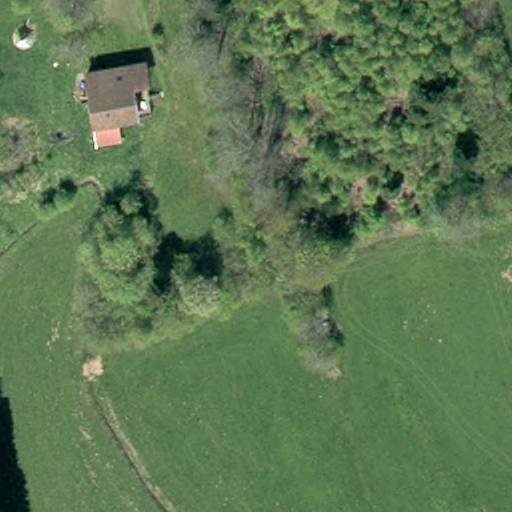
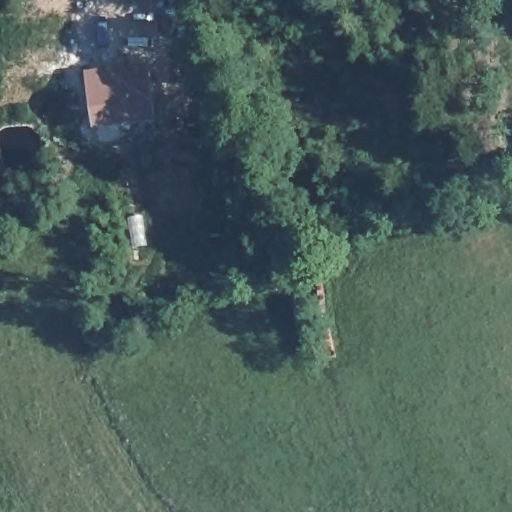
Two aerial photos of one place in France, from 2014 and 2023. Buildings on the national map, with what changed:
unchanged [(93,136),(90,117),(80,70),(136,57),(147,105),(120,110),(124,129),(93,136)]

